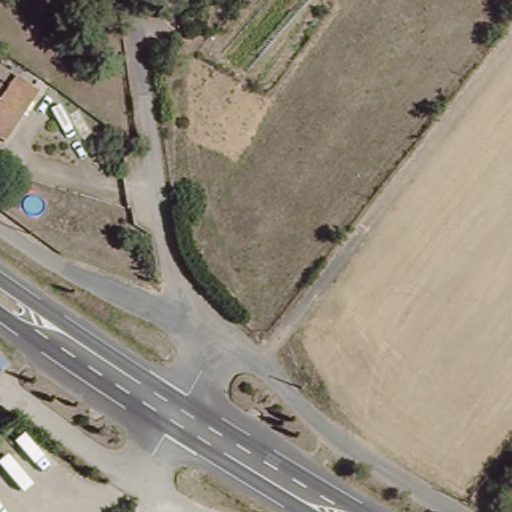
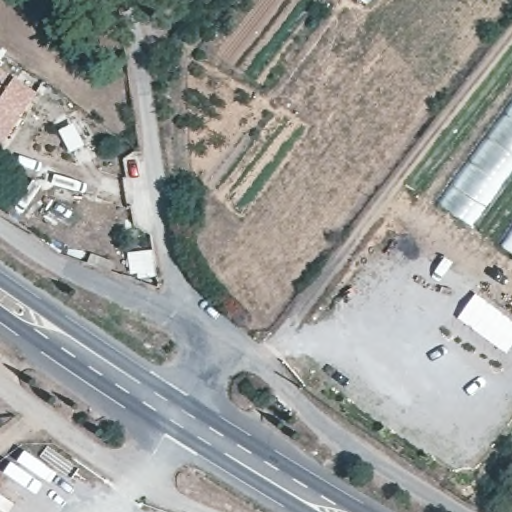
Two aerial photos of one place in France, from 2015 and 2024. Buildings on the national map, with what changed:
unchanged [(32,90),(0,138),(0,68),(10,75),(32,90)]
new [(440,203),(512,106),(512,168),(470,225),(440,203)]
new [(502,246),(512,232),(512,253),(502,246)]
new [(506,353),(458,318),(475,293),(512,321),(512,345),(506,353)]

